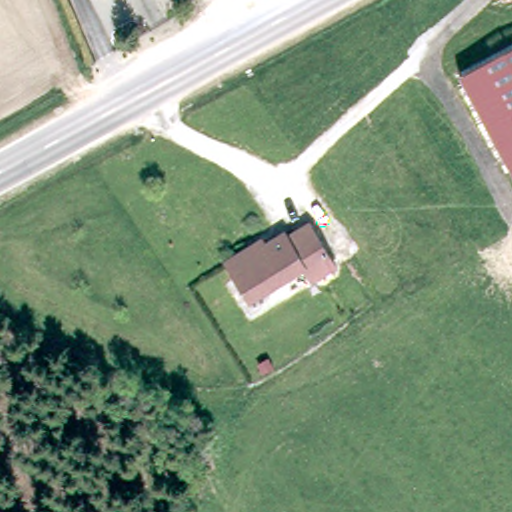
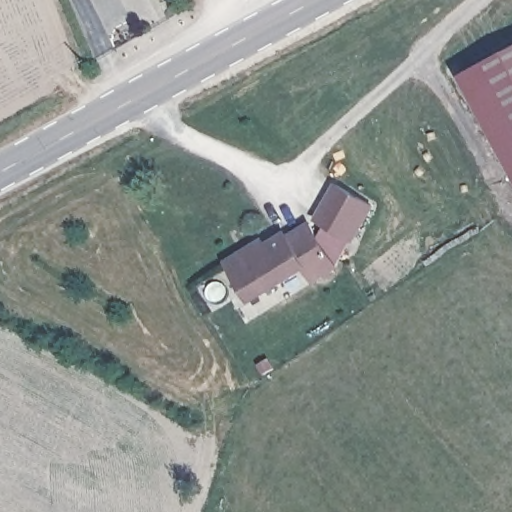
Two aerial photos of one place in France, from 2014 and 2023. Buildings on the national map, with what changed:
unchanged [(512,48),(512,168),(462,75),(512,48)]
new [(373,204),(355,241),(315,219),(333,183),(373,204)]
unchanged [(290,236),(312,223),(338,265),(315,280),(307,266),(253,299),(230,260),(252,246),(265,239),(267,244),(287,232),(290,236)]

